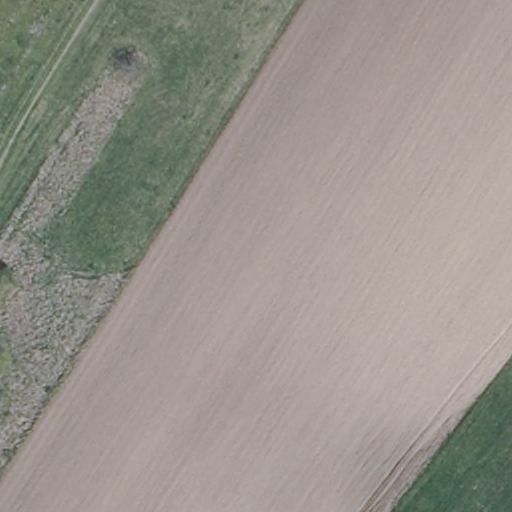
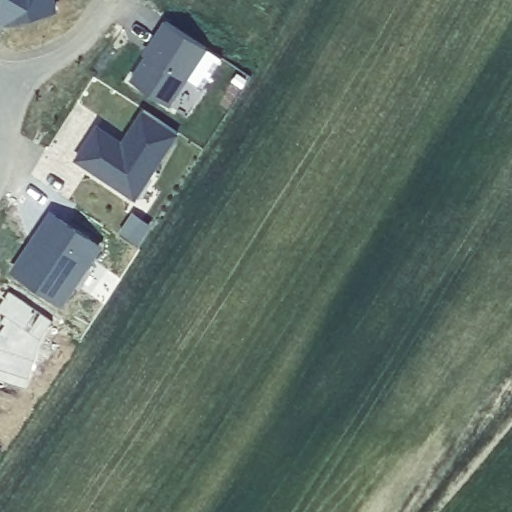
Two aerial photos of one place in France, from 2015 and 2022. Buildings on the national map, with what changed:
new [(9,20),(5,26),(0,23),(0,0),(53,0),(55,8),(9,20)]
new [(160,36),(157,35),(166,20),(206,46),(168,104),(131,80),(160,36)]
new [(97,126),(122,143),(144,109),(177,131),(135,197),(76,158),(97,126)]
new [(34,241),(37,243),(42,236),(38,234),(52,214),(98,245),(61,300),(15,269),(34,241)]
new [(40,339),(26,389),(0,381),(0,332),(4,327),(0,324),(5,317),(0,314),(0,306),(9,293),(52,323),(40,339)]

